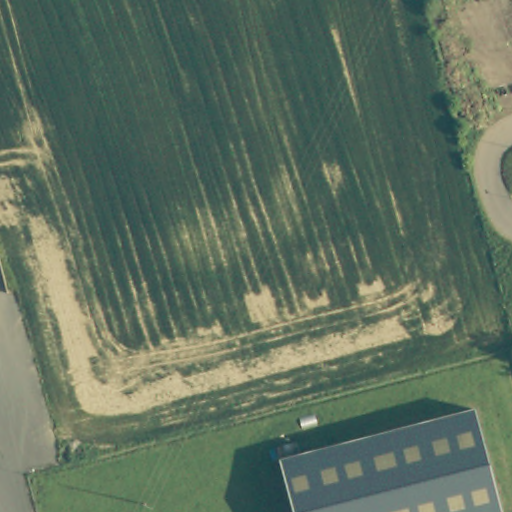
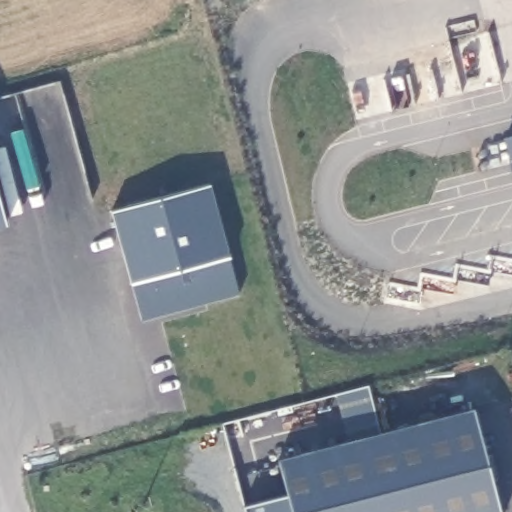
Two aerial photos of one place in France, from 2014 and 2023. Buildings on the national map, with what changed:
new [(214,188),(232,262),(134,287),(115,213),(214,188)]
new [(7,222),(0,225),(0,195),(7,222)]
new [(232,262),(241,298),(143,323),(134,287),(232,262)]
unchanged [(293,512),(280,461),(475,412),(500,512),(293,512)]

